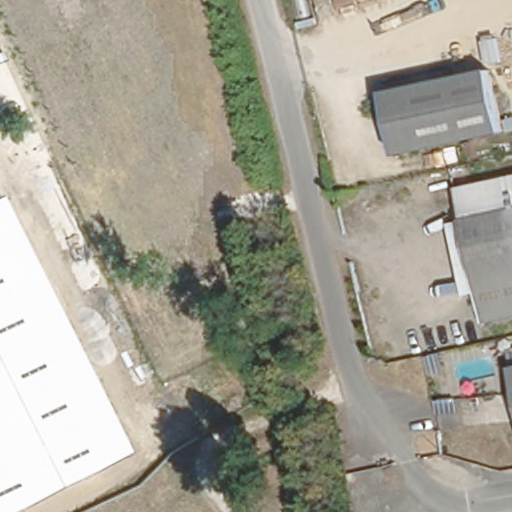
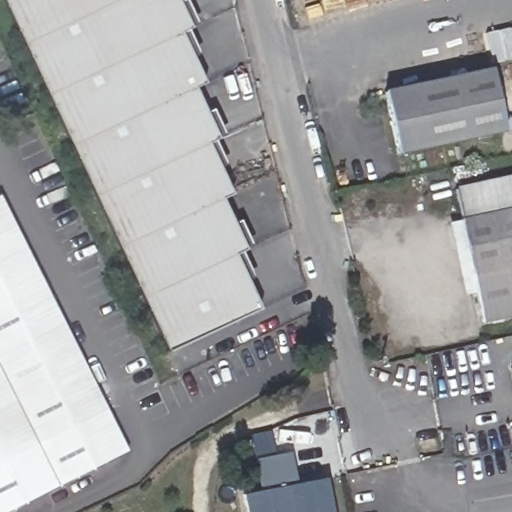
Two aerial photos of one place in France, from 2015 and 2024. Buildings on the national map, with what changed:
new [(178,2),(182,0),(186,0),(197,26),(192,29),(189,30),(198,54),(192,58),(204,84),(194,89),(205,112),(213,110),(224,136),(218,139),(215,140),(225,167),(220,170),(232,195),(221,200),(233,225),(240,221),(252,247),(246,251),(243,252),(253,278),(246,282),(259,310),(167,353),(3,0),(177,0),(178,2)]
unchanged [(453,79),(486,71),(501,129),(400,155),(385,95),(453,79)]
unchanged [(8,512),(0,512),(0,199),(3,197),(126,451),(8,512)]
unchanged [(512,206),(512,314),(481,322),(456,220),(512,206)]
unchanged [(512,367),(512,376),(510,367),(512,367)]
new [(289,452),(296,484),(323,478),(330,512),(247,512),(243,495),(261,492),(254,460),(289,452)]

